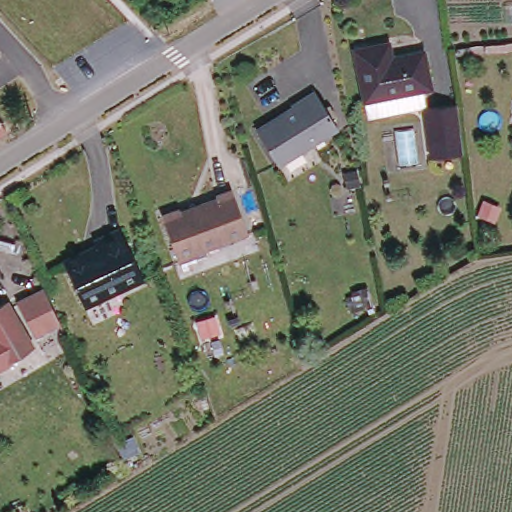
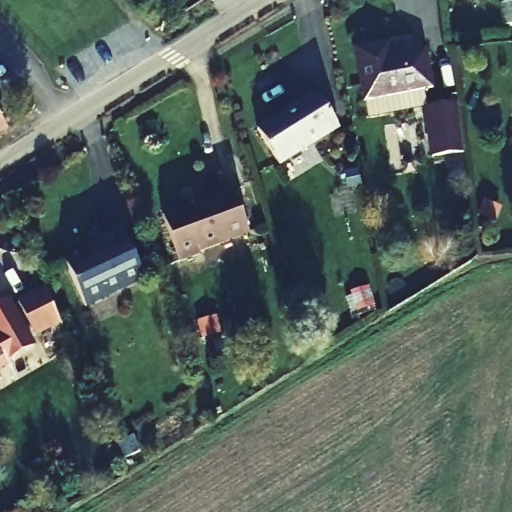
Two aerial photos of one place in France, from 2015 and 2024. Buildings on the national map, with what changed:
unchanged [(432,86),(367,98),(357,46),(390,40),(395,59),(400,58),(400,53),(425,48),(432,86)]
unchanged [(275,166),(253,133),(290,110),(288,106),(310,91),(335,129),(275,166)]
unchanged [(431,157),(424,108),(456,103),(462,153),(431,157)]
unchanged [(4,130),(0,132),(0,123),(4,130)]
unchanged [(178,212),(180,214),(215,202),(214,199),(232,193),(248,236),(197,255),(198,258),(177,265),(160,218),(178,212)]
unchanged [(147,277),(86,304),(66,259),(87,248),(90,252),(102,247),(98,238),(123,227),(147,277)]
unchanged [(43,287),(60,324),(35,337),(17,300),(43,287)]
unchanged [(28,344),(0,362),(0,301),(2,300),(28,344)]

